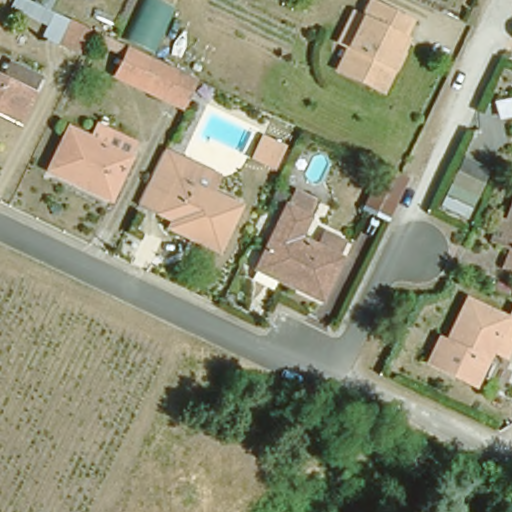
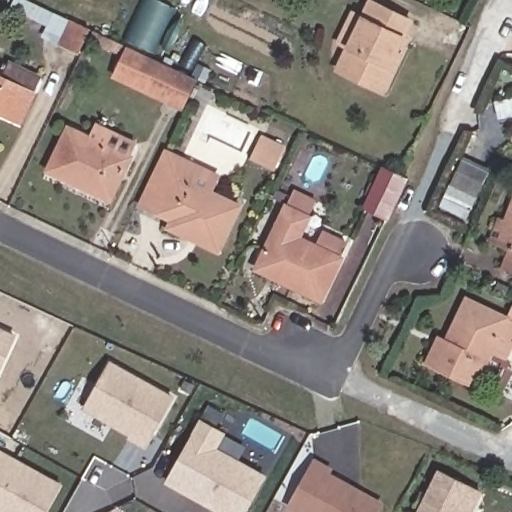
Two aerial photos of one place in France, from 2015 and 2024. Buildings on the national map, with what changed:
unchanged [(340,63),(350,40),(337,33),(350,4),(364,11),(369,0),(384,0),(409,12),(401,31),(408,34),(400,52),(384,86),(371,79),(340,63)]
new [(69,34),(84,40),(78,54),(41,37),(45,28),(23,16),(29,3),(74,23),(69,34)]
unchanged [(89,43),(70,33),(81,7),(101,18),(89,43)]
unchanged [(180,104),(156,93),(113,71),(120,58),(128,43),(194,76),(180,104)]
unchanged [(35,72),(28,86),(31,87),(14,119),(0,112),(0,63),(4,56),(35,72)]
unchanged [(56,171),(46,166),(57,145),(59,142),(66,126),(84,134),(89,125),(93,117),(101,121),(105,124),(118,131),(124,134),(134,139),(106,195),(99,192),(56,171)]
unchanged [(292,141),(281,161),(261,151),(271,131),(292,141)]
unchanged [(161,146),(163,147),(183,156),(213,171),(206,187),(236,202),(213,249),(165,224),(168,217),(134,202),(146,177),(161,146)]
new [(467,219),(439,206),(463,156),(490,169),(467,219)]
unchanged [(396,166),(401,168),(391,189),(380,212),(375,210),(359,201),(380,158),(396,166)]
unchanged [(497,258),(504,240),(492,234),(512,185),(512,264),(497,258)]
unchanged [(288,198),(293,187),(314,197),(310,209),(296,238),(315,247),(321,233),(343,244),(336,258),(317,298),(276,277),(253,265),(258,256),(288,198)]
unchanged [(441,344),(444,337),(465,297),(503,316),(509,304),(512,305),(512,336),(502,356),(487,348),(472,378),(427,355),(434,341),(441,344)]
new [(0,330),(16,337),(0,373),(0,330)]
new [(146,448),(129,438),(131,434),(86,410),(112,364),(174,399),(146,448)]
new [(167,483),(201,422),(223,434),(215,450),(265,478),(245,512),(220,512),(215,509),(208,506),(167,483)]
new [(0,451),(16,461),(0,489),(0,451)]
new [(0,489),(16,461),(64,487),(49,512),(0,512),(0,489)]
new [(382,505),(377,512),(298,512),(290,508),(316,462),(331,471),(328,475),(382,505)]
new [(439,472),(481,493),(471,512),(418,512),(439,472)]

